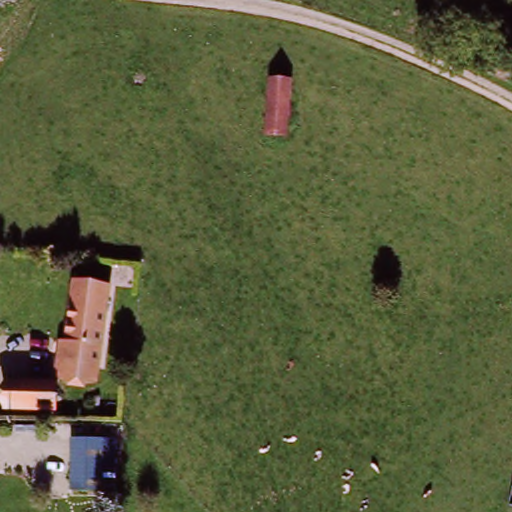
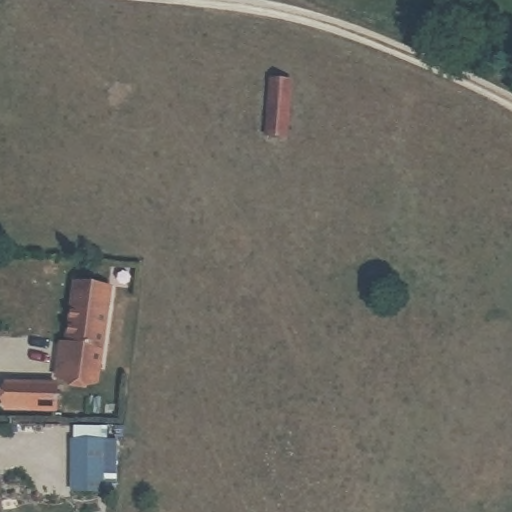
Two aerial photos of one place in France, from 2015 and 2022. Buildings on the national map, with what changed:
unchanged [(263,142),(265,87),(285,88),(283,141),(263,142)]
unchanged [(62,348),(67,348),(75,285),(109,289),(99,369),(60,364),(62,348)]
unchanged [(20,388),(69,389),(69,413),(19,412),(20,388)]
unchanged [(102,491),(72,491),(74,441),(104,442),(102,491)]

